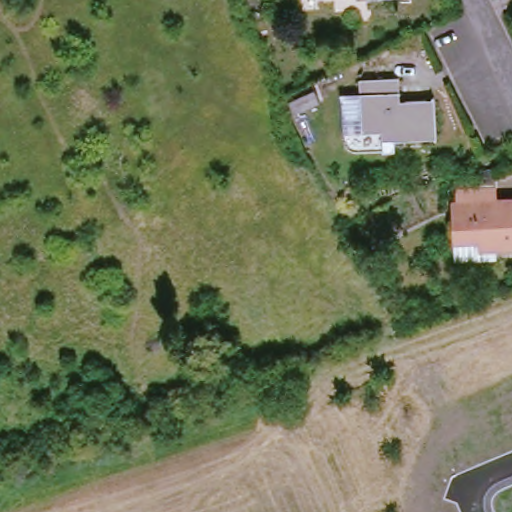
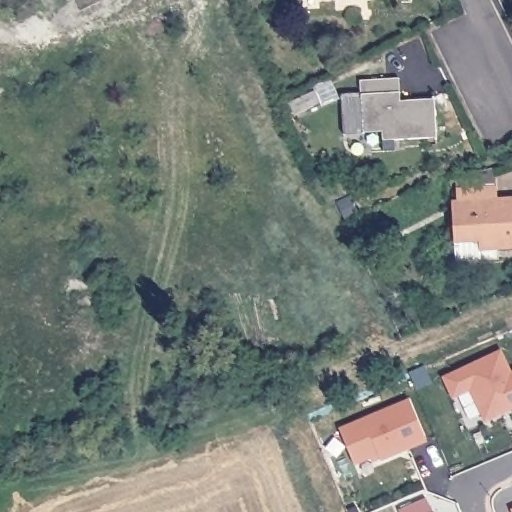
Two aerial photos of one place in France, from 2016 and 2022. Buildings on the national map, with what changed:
unchanged [(387,137),(368,138),(365,86),(404,84),(405,107),(440,105),(442,143),(399,146),(388,146),(387,137)]
unchanged [(451,174),(491,164),(492,181),(494,204),(512,203),(512,242),(492,244),(493,252),(451,255),(450,236),(455,236),(452,183),(451,174)]
new [(470,389),(453,397),(444,378),(500,352),(511,375),(512,374),(512,408),(507,410),(501,413),(485,420),(470,389)]
new [(409,400),(426,441),(381,460),(379,454),(355,464),(340,429),(409,400)]
new [(433,512),(401,512),(428,500),(433,512)]
new [(512,511),(512,512),(511,512),(511,511),(512,511)]

